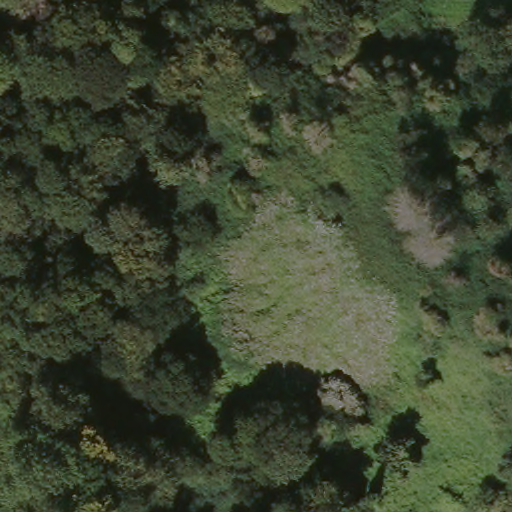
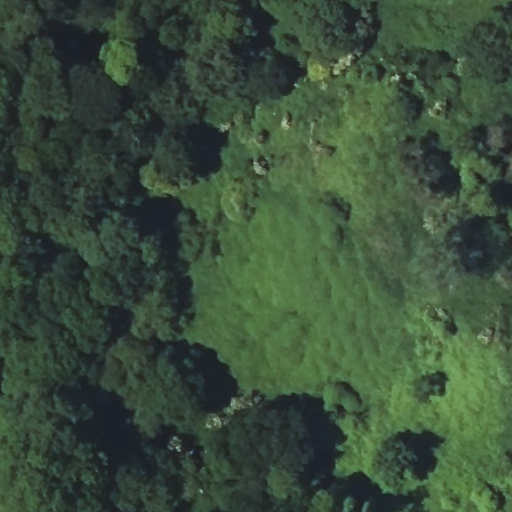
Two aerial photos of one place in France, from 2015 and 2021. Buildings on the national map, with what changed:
[]

